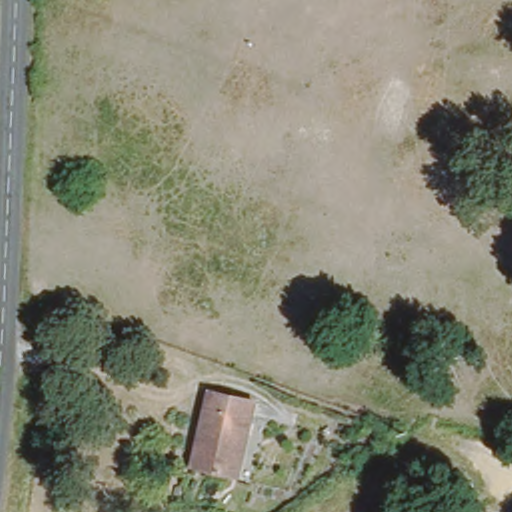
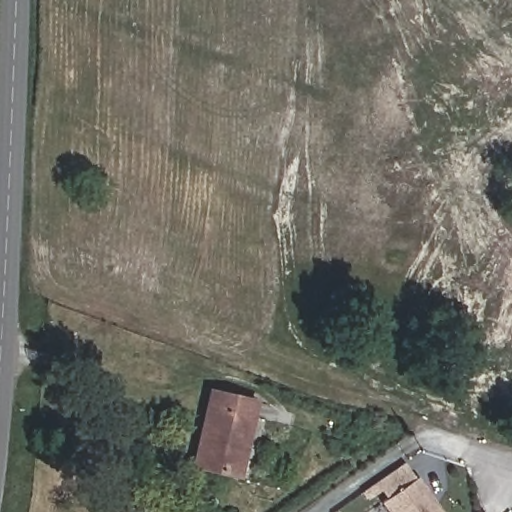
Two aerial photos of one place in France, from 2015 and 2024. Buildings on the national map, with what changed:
unchanged [(253,403),(246,434),(242,433),(232,475),(194,466),(210,393),(253,403)]
new [(408,484),(419,476),(443,512),(388,512),(381,502),(387,499),(376,483),(396,469),(408,484)]

